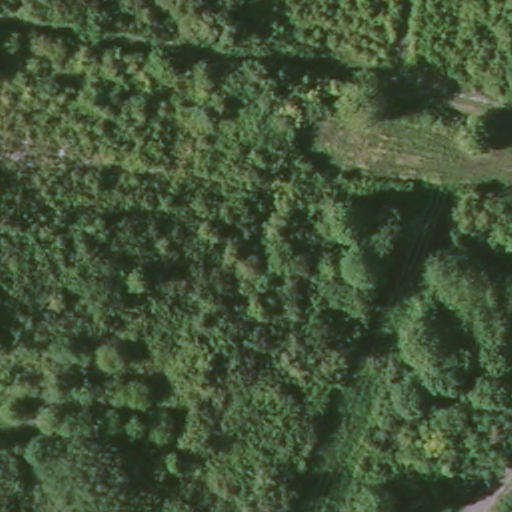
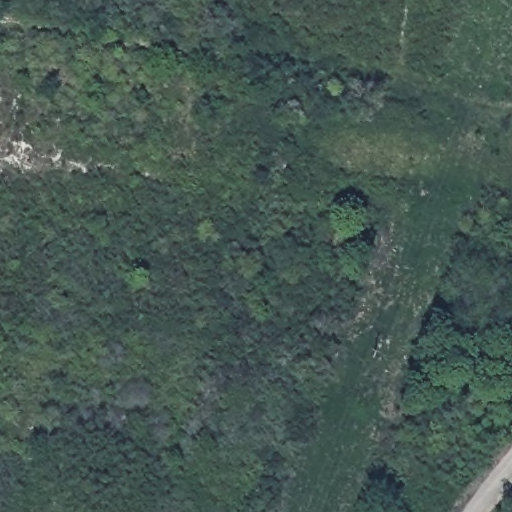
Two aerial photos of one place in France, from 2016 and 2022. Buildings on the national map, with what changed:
unchanged [(380,1),(380,0),(399,0),(399,1),(380,1)]

